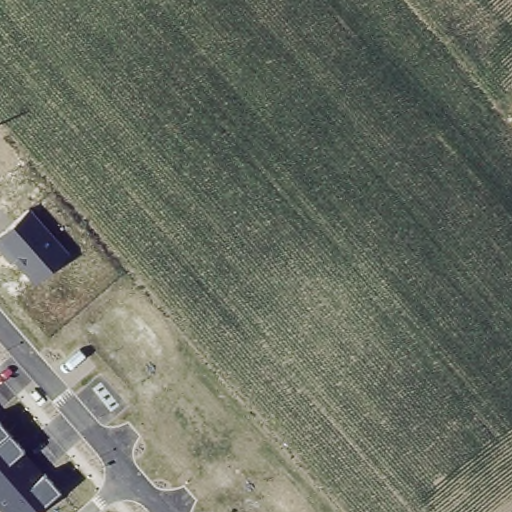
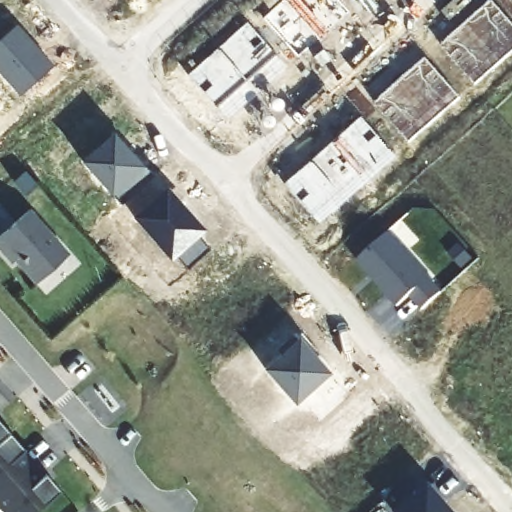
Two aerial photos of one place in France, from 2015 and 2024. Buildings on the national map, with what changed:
new [(263,18),(283,0),(337,0),(347,12),(297,57),(263,18)]
new [(491,1),(512,24),(512,52),(475,85),(440,46),(491,1)]
new [(188,75),(246,22),(286,66),(227,119),(188,75)]
new [(0,74),(0,40),(17,25),(53,66),(20,96),(0,74)]
new [(375,104),(425,59),(460,97),(409,142),(375,104)]
new [(284,184),(359,116),(395,156),(319,223),(284,184)]
new [(114,132),(145,167),(152,176),(121,204),(112,195),(82,162),(114,132)]
new [(132,217),(166,187),(205,231),(197,237),(209,250),(187,268),(176,256),(170,261),(132,217)]
unchanged [(72,253),(37,283),(15,261),(12,262),(0,248),(0,234),(29,206),(72,253)]
new [(357,261),(389,232),(442,290),(422,310),(409,296),(397,307),(357,261)]
new [(263,369),(298,337),(330,373),(295,405),(263,369)]
unchanged [(26,453),(12,467),(31,487),(46,475),(59,491),(35,512),(7,512),(0,504),(0,423),(26,453)]
new [(453,512),(390,512),(425,481),(453,512)]

